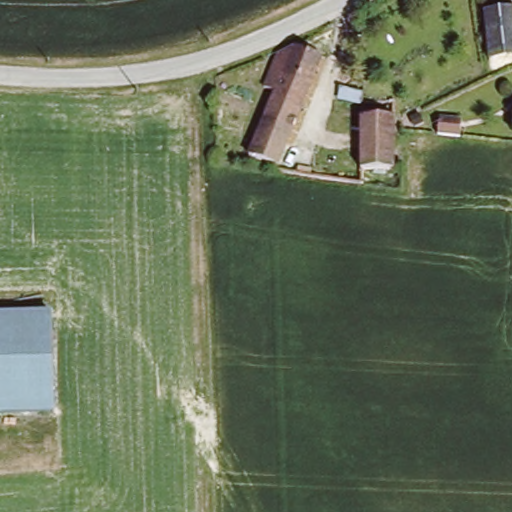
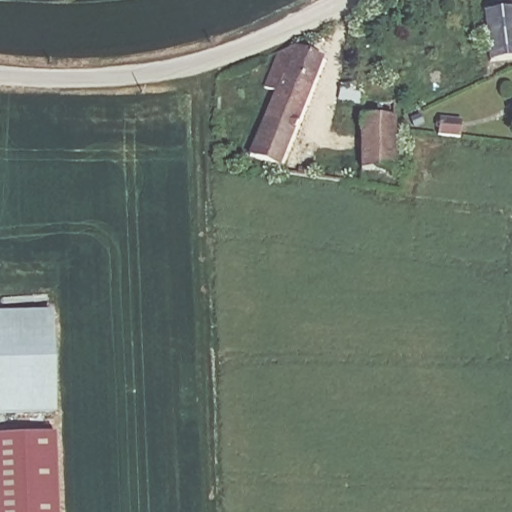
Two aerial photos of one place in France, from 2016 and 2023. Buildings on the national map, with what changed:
unchanged [(483,9),(512,5),(512,57),(490,60),(483,9)]
unchanged [(280,165),(252,153),(277,93),(265,88),(281,49),(296,43),(326,57),(284,154),(280,165)]
unchanged [(372,90),(369,101),(341,93),(344,83),(372,90)]
unchanged [(393,116),(395,171),(361,171),(360,116),(393,116)]
unchanged [(437,128),(458,129),(459,143),(457,143),(438,141),(437,128)]
unchanged [(50,312),(54,411),(0,414),(0,313),(50,311),(50,312)]
new [(59,512),(0,512),(0,437),(56,434),(59,512)]

